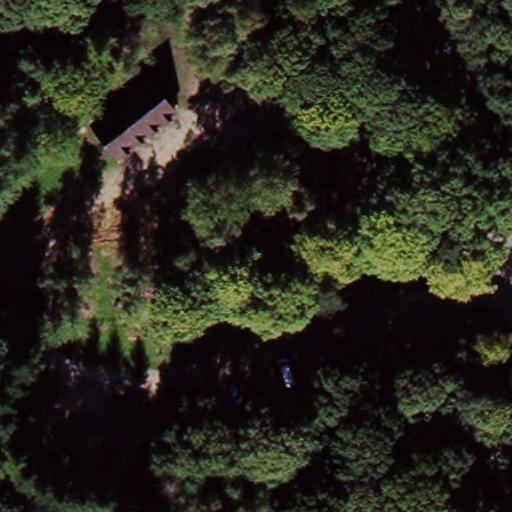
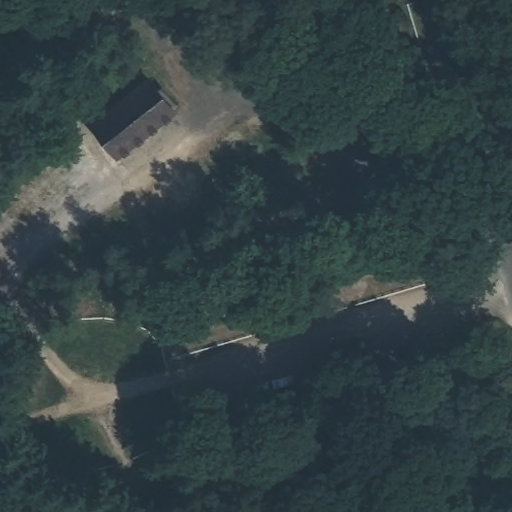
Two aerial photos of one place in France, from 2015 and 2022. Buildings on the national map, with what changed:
unchanged [(177,114),(120,162),(117,157),(45,217),(20,186),(90,125),(146,79),(177,114)]
unchanged [(125,192),(150,226),(128,239),(97,212),(125,192)]

